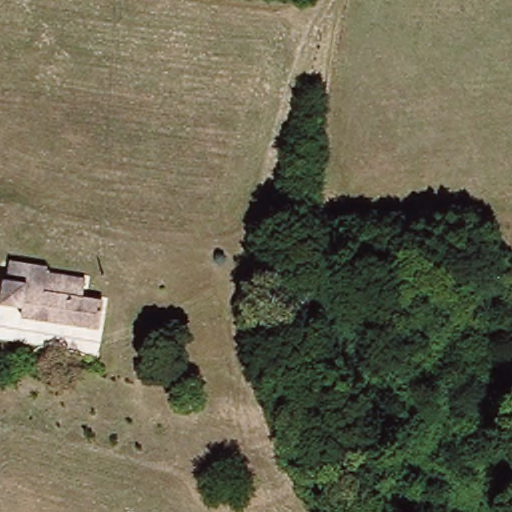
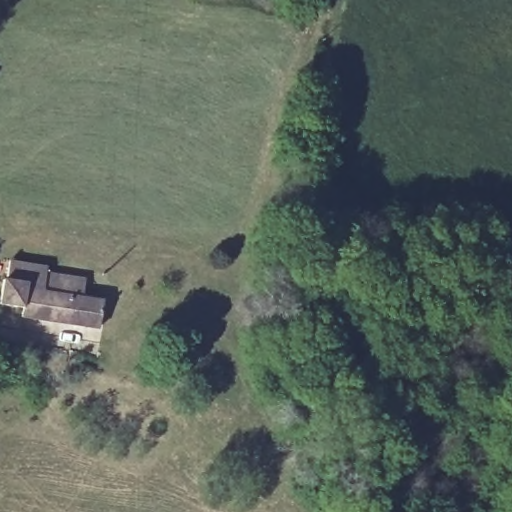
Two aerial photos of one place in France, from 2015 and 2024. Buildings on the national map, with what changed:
unchanged [(4,279),(9,280),(10,260),(45,265),(45,268),(44,271),(42,290),(27,289),(24,307),(1,305),(4,279)]
unchanged [(27,289),(42,290),(44,271),(86,278),(85,298),(105,301),(102,327),(22,316),(24,307),(27,289)]

